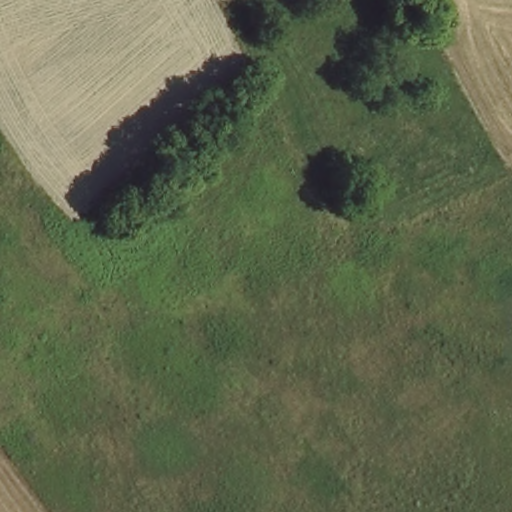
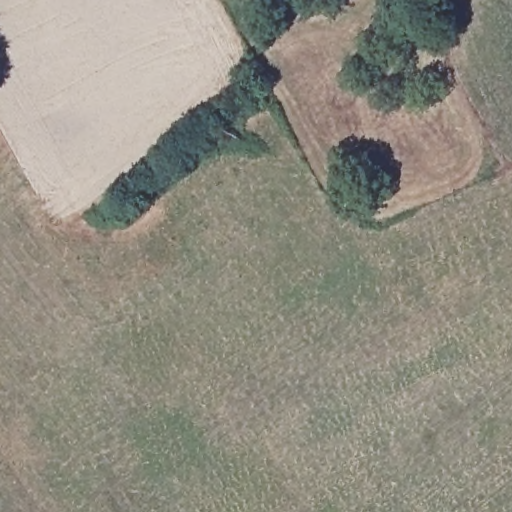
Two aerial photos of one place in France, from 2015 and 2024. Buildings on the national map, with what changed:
[]

